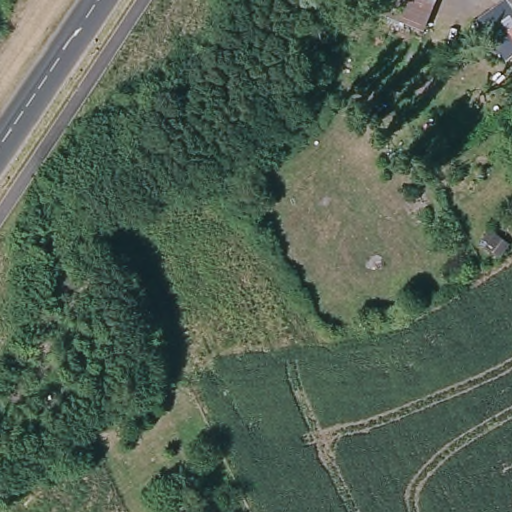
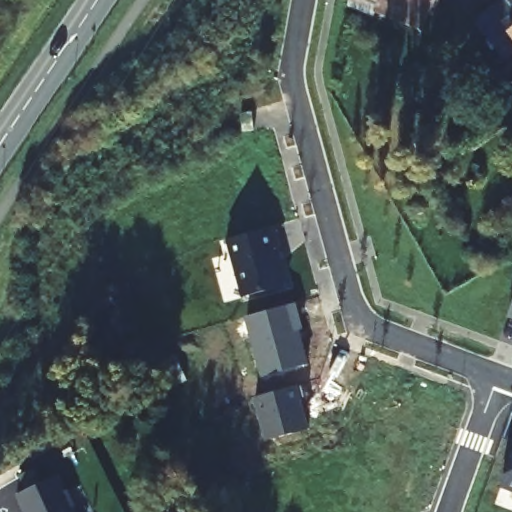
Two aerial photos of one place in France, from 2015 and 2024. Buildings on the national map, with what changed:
unchanged [(390,3),(384,0),(391,0),(390,3)]
unchanged [(442,12),(438,21),(390,3),(391,0),(446,0),(442,12)]
unchanged [(477,25),(478,24),(507,2),(508,0),(512,0),(512,55),(503,61),(477,25)]
new [(293,286),(244,297),(227,238),(278,226),(293,286)]
new [(305,330),(300,331),(310,365),(263,379),(245,317),(298,303),(305,330)]
new [(512,303),(512,318),(507,316),(512,303)]
new [(310,428),(267,441),(253,398),(300,385),(310,428)]
new [(512,455),(512,490),(501,486),(512,455)]
new [(73,512),(23,512),(15,496),(56,476),(73,512)]

